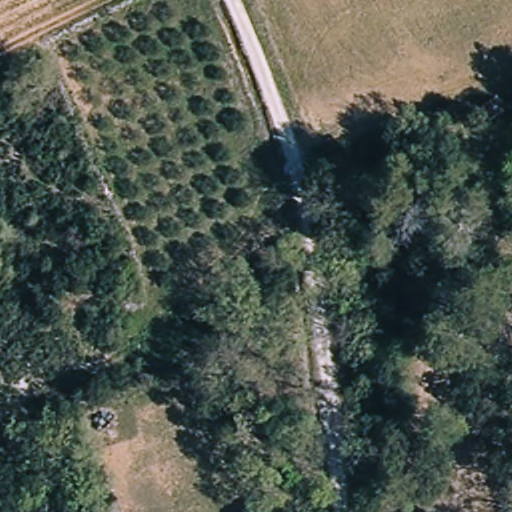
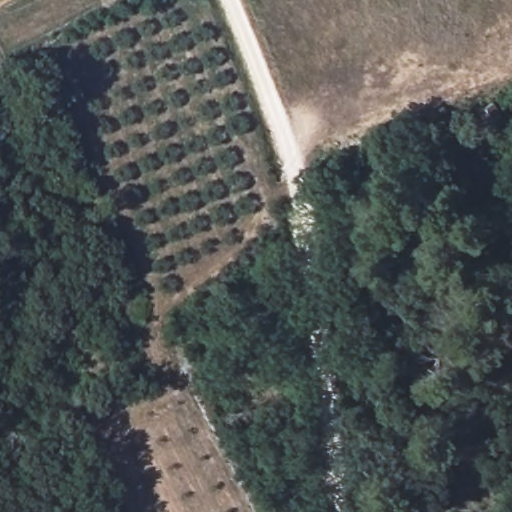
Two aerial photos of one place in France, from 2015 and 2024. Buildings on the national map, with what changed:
unchanged [(497,111),(482,120),(472,105),(487,95),(497,111)]

